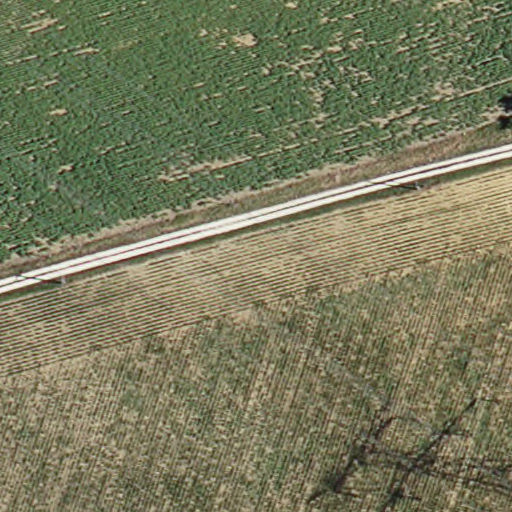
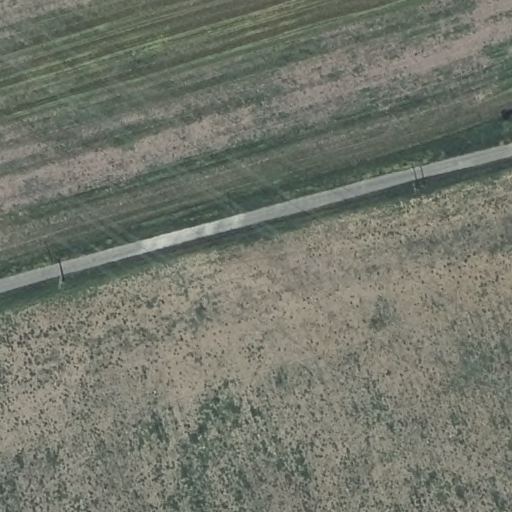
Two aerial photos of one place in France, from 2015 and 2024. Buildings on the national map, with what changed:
[]

